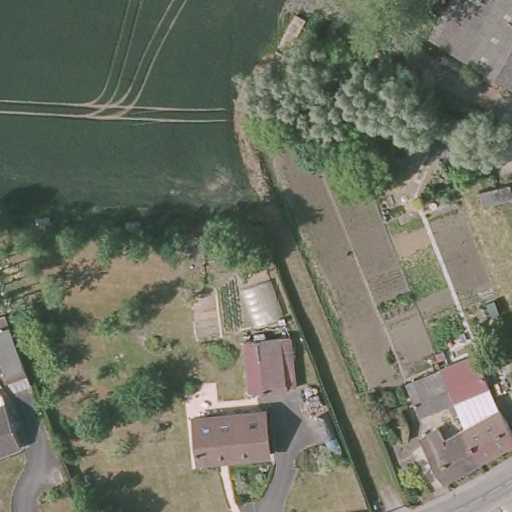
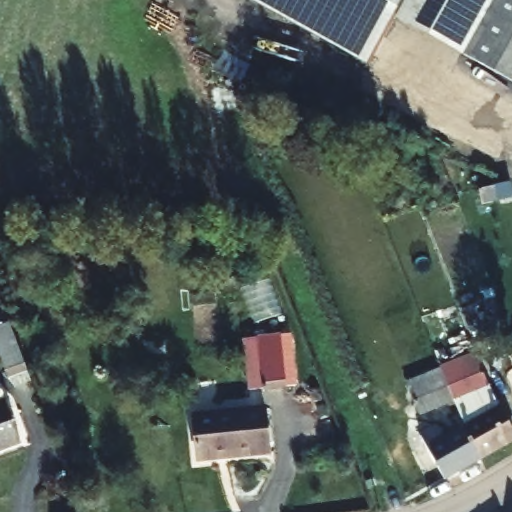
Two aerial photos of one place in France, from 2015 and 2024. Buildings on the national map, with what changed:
new [(398,10),(366,66),(249,0),(441,0),(425,25),(398,10)]
unchanged [(441,0),(512,0),(512,82),(425,25),(441,0)]
unchanged [(14,382),(12,376),(0,346),(0,335),(15,329),(33,373),(14,382)]
unchanged [(297,383),(289,384),(290,387),(265,390),(265,387),(250,390),(244,339),(293,333),(297,383)]
unchanged [(404,380),(472,353),(485,387),(453,401),(417,415),(404,380)]
unchanged [(478,459),(466,431),(453,401),(485,387),(508,441),(478,459)]
unchanged [(0,404),(0,396),(3,403),(0,404)]
unchanged [(20,444),(0,451),(0,404),(3,403),(20,444)]
unchanged [(272,449),(198,459),(193,420),(265,410),(272,449)]
unchanged [(441,481),(428,452),(466,431),(478,459),(441,481)]

